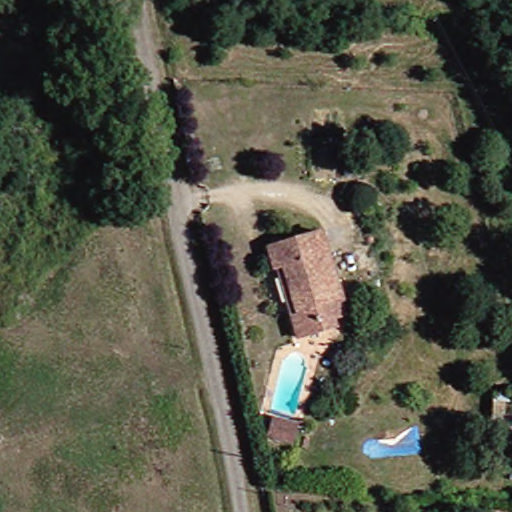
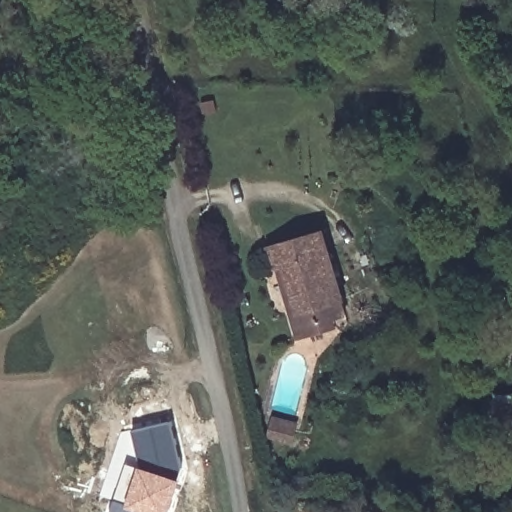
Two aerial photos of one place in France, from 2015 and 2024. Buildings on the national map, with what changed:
unchanged [(351,312),(350,319),(349,322),(331,327),(303,334),(297,310),(285,262),(281,263),(276,244),(329,231),(347,297),(350,304),(351,312)]
new [(181,480),(170,512),(112,512),(128,462),(140,466),(142,460),(135,430),(172,422),(182,467),(181,480)]

